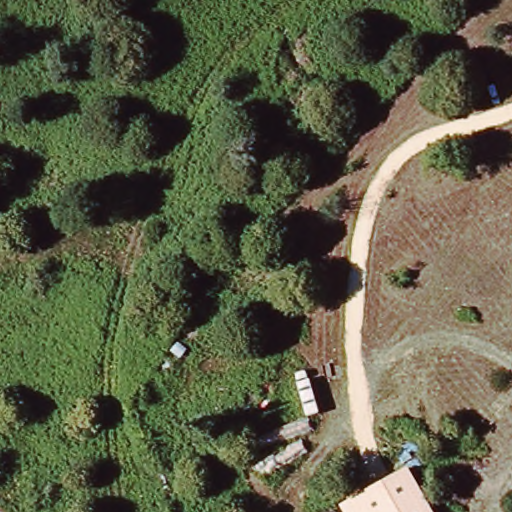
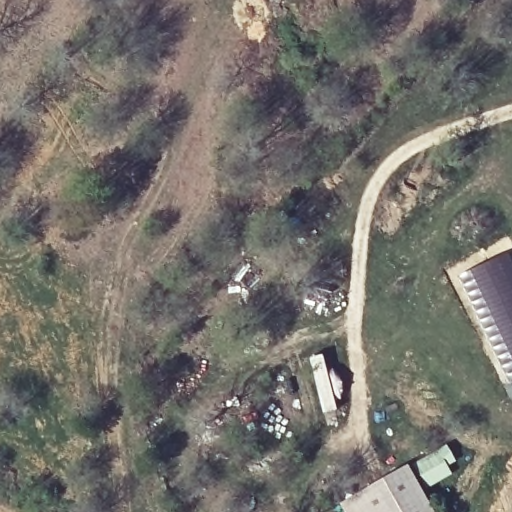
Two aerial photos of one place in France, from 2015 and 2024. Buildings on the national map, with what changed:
new [(508,254),(512,263),(512,385),(509,387),(480,328),(458,277),(508,254)]
new [(446,445),(457,462),(448,467),(453,475),(429,488),(414,463),(446,445)]
unchanged [(432,512),(346,512),(342,505),(406,467),(432,512)]

